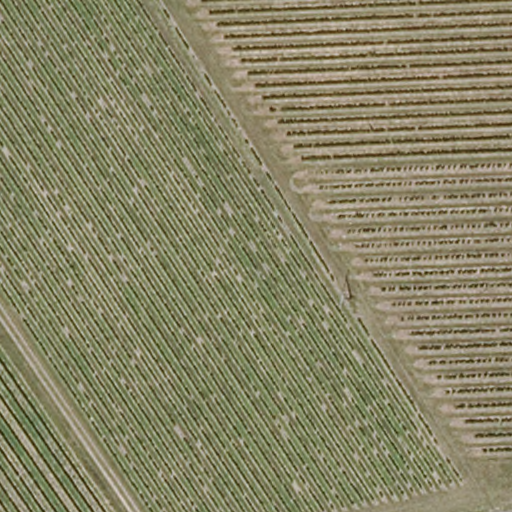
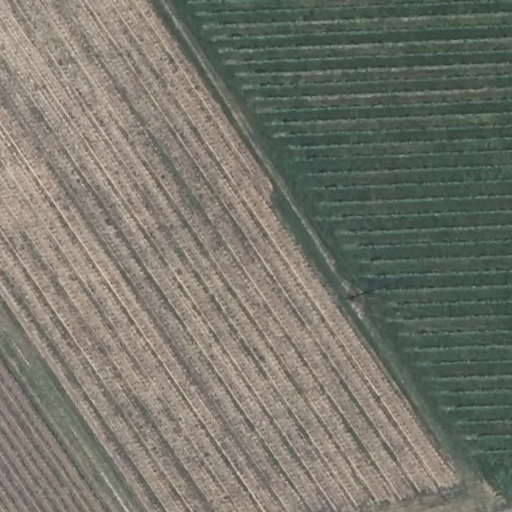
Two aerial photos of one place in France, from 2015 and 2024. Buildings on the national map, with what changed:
[]

